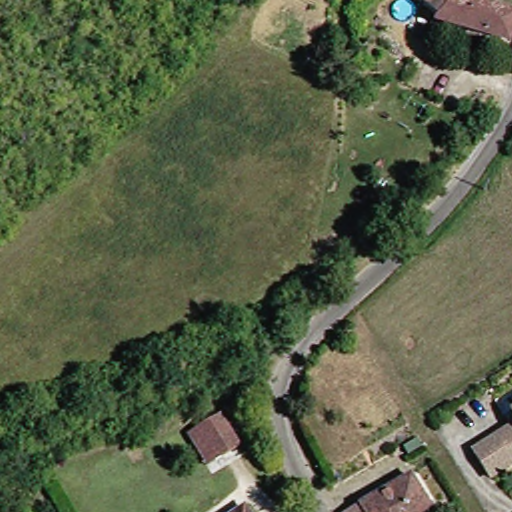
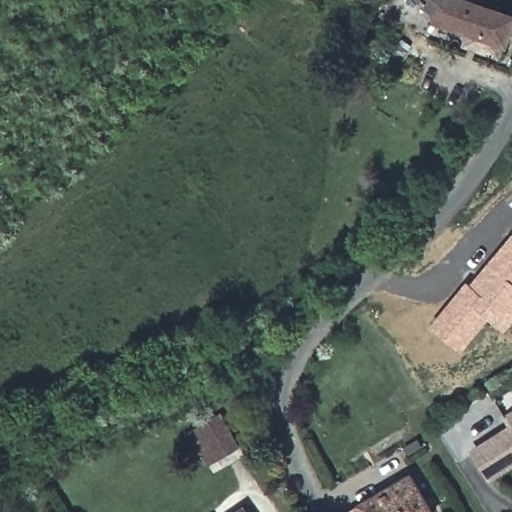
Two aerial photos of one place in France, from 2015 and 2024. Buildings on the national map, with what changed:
unchanged [(426,21),(433,12),(421,0),(458,0),(512,16),(500,60),(482,55),(464,49),(469,34),(426,21)]
new [(491,318),(464,351),(432,326),(468,281),(472,283),(512,235),(512,326),(507,331),(491,318)]
unchanged [(237,444),(206,463),(188,432),(218,413),(237,444)]
unchanged [(475,453),(512,430),(512,468),(492,481),(475,453)]
unchanged [(349,512),(356,507),(353,503),(406,473),(429,512),(349,512)]
unchanged [(243,512),(237,512),(242,509),(243,512)]

